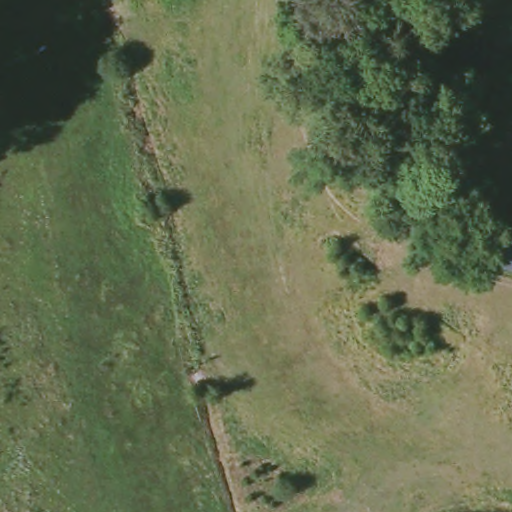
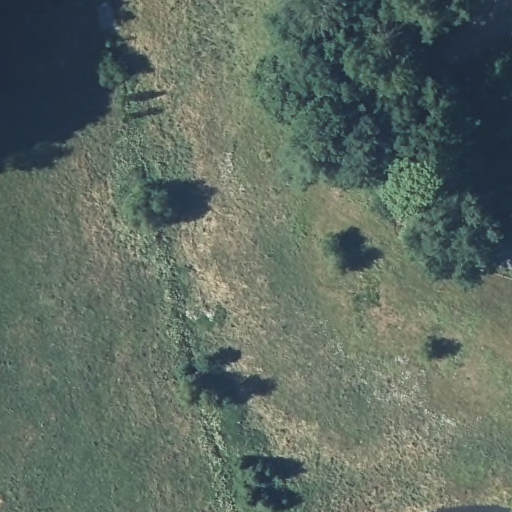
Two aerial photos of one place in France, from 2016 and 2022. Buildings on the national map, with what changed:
unchanged [(512,258),(475,248),(485,209),(512,216),(512,258)]

